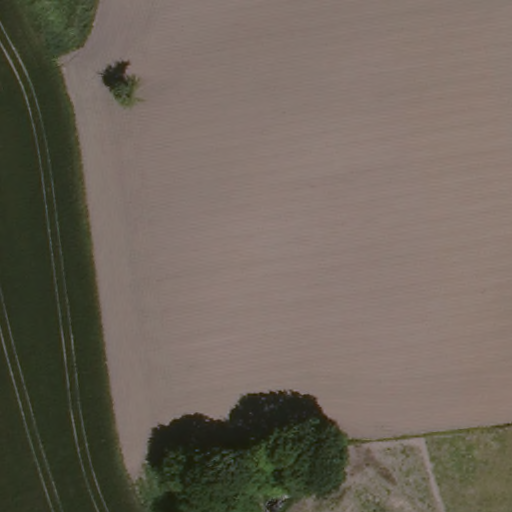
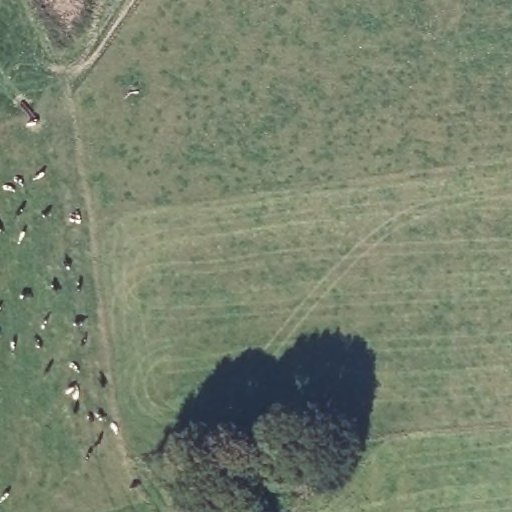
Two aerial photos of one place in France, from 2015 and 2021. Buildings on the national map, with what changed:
unchanged [(209,512),(208,510),(241,492),(251,512),(209,512)]

